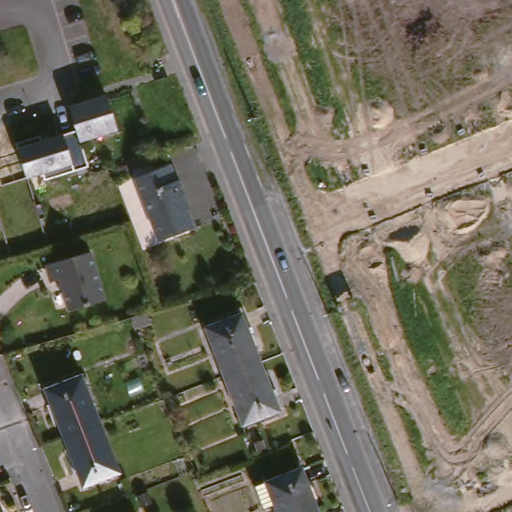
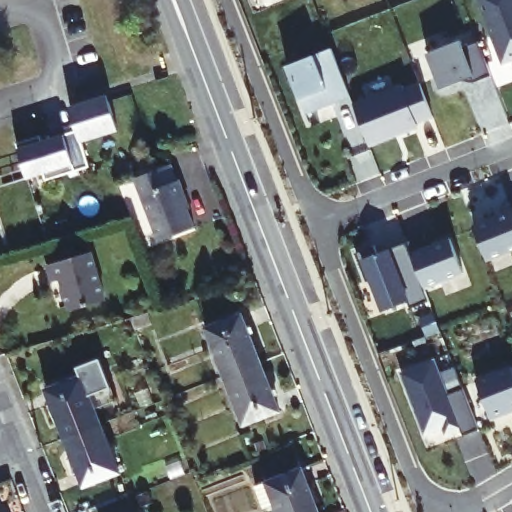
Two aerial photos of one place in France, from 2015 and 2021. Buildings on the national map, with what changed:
new [(478,0),(512,0),(512,59),(502,63),(478,0)]
new [(460,40),(462,47),(477,41),(491,75),(472,82),(470,76),(440,88),(427,53),(460,40)]
new [(331,48),(349,95),(305,112),(287,65),(331,48)]
new [(401,85),(403,89),(419,83),(432,116),(416,122),(417,126),(369,145),(353,104),(401,85)]
unchanged [(32,137),(33,142),(70,130),(64,110),(82,104),(101,99),(103,105),(111,133),(75,144),(82,168),(38,182),(36,174),(19,179),(8,145),(25,139),(32,137)]
unchanged [(173,163),(179,180),(182,179),(190,200),(186,202),(195,225),(161,238),(137,176),(173,163)]
new [(473,226),(512,211),(512,249),(486,259),(473,226)]
new [(423,234),(427,246),(449,237),(462,272),(423,287),(405,241),(423,234)]
new [(373,245),(376,253),(405,241),(423,287),(428,300),(410,308),(407,301),(383,310),(371,279),(366,281),(355,252),(373,245)]
unchanged [(88,248),(105,299),(71,311),(61,279),(54,281),(47,261),(88,248)]
unchanged [(151,323),(135,328),(131,318),(148,313),(151,323)]
unchanged [(207,328),(243,314),(261,362),(225,376),(207,328)]
new [(434,359),(448,394),(463,388),(479,429),(463,435),(460,428),(446,434),(443,427),(425,434),(401,372),(434,359)]
unchanged [(279,409),(242,423),(225,376),(261,362),(279,409)]
new [(511,370),(512,370),(512,411),(492,417),(475,379),(509,365),(511,370)]
unchanged [(42,390),(78,376),(96,423),(61,437),(42,390)]
unchanged [(115,469),(79,483),(61,437),(96,423),(115,469)]
unchanged [(266,507),(258,486),(267,483),(302,469),(319,512),(278,512),(275,504),(266,507)]

